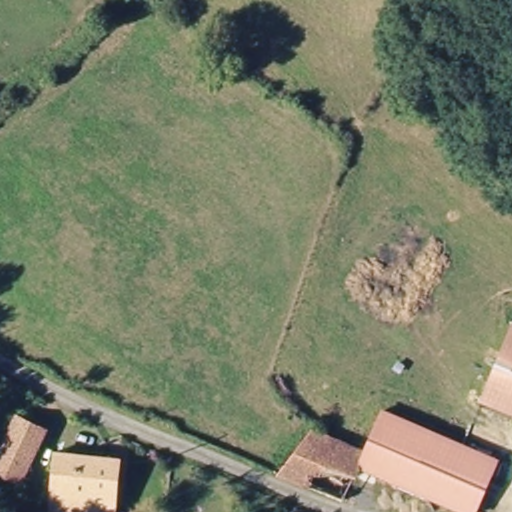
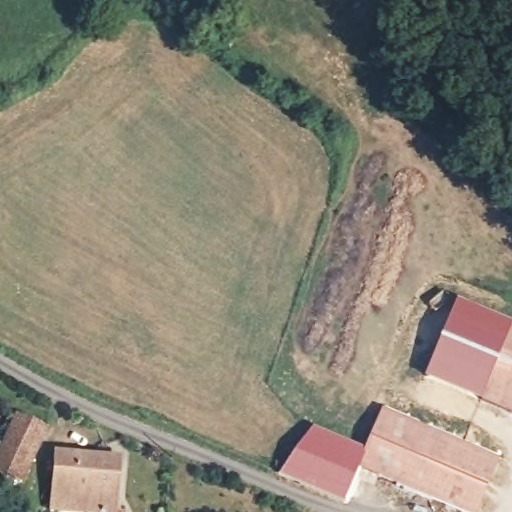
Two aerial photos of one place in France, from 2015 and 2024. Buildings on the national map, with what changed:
new [(424,377),(456,298),(512,323),(512,329),(510,328),(483,403),(424,377)]
unchanged [(512,329),(512,414),(483,403),(510,328),(512,329)]
unchanged [(381,410),(502,463),(480,512),(465,512),(365,467),(369,453),(363,451),(381,410)]
unchanged [(23,484),(15,480),(0,474),(0,449),(15,416),(46,430),(23,484)]
unchanged [(311,430),(363,451),(369,453),(365,467),(360,481),(353,502),(287,482),(299,455),(311,430)]
unchanged [(98,507),(53,504),(56,445),(115,449),(112,500),(123,508),(122,512),(97,512),(98,507)]

